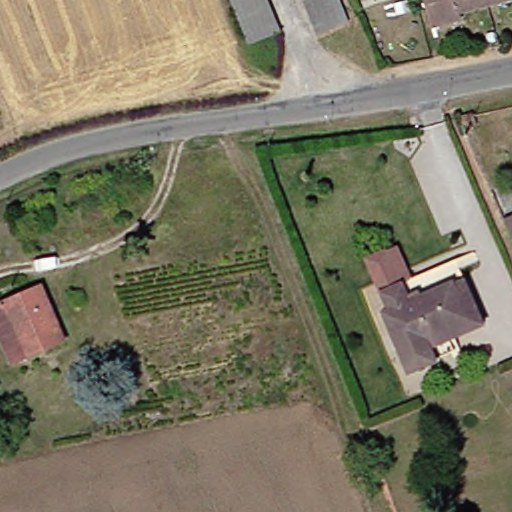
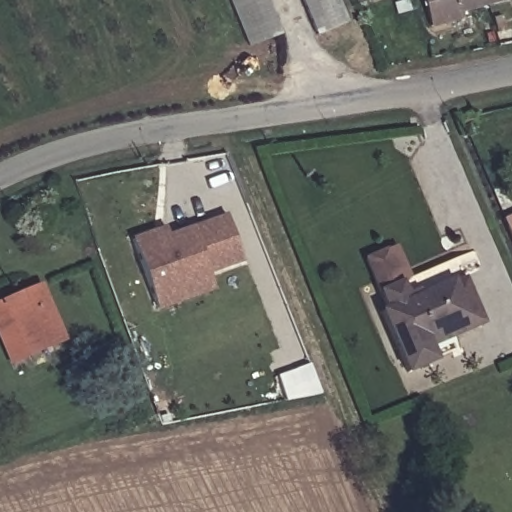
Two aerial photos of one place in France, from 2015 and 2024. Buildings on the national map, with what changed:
unchanged [(230,0),(266,0),(280,33),(249,46),(230,0)]
unchanged [(302,0),(339,0),(349,24),(317,36),(302,0)]
unchanged [(365,0),(367,0),(365,1),(365,0)]
unchanged [(490,8),(460,16),(462,20),(431,28),(423,0),(512,0),(512,1),(490,8)]
new [(132,239),(165,228),(169,235),(227,215),(242,263),(210,276),(214,291),(158,312),(132,239)]
unchanged [(500,227),(512,221),(512,254),(500,227)]
unchanged [(406,278),(413,295),(446,282),(462,320),(419,337),(430,362),(402,374),(375,311),(380,309),(360,259),(392,245),(406,278)]
unchanged [(462,320),(446,282),(413,295),(406,278),(450,260),(458,277),(479,326),(444,340),(449,354),(430,362),(419,337),(462,320)]
unchanged [(0,302),(40,284),(65,341),(45,349),(10,364),(0,342),(0,302)]

